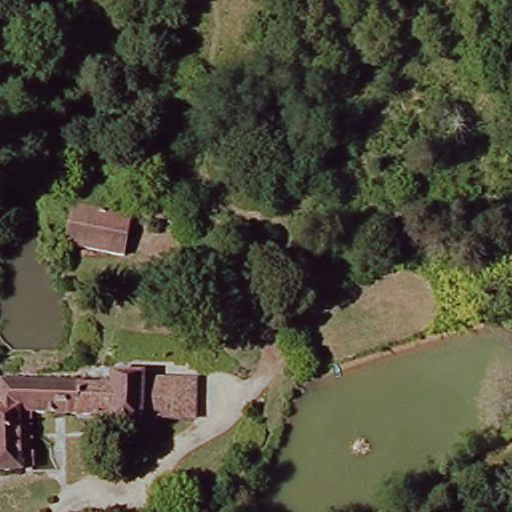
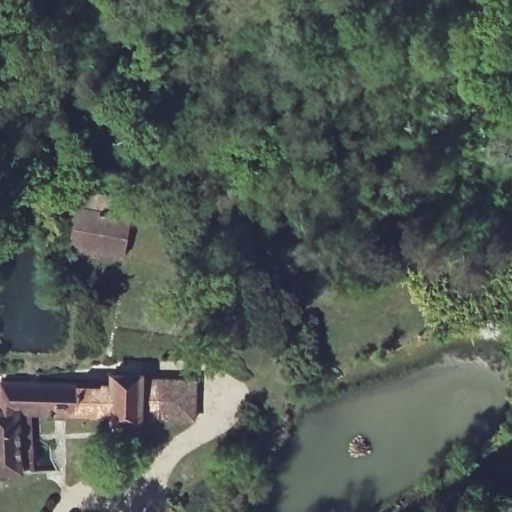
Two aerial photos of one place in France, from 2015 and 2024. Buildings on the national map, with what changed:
unchanged [(57,212),(59,187),(70,187),(67,212),(57,212)]
unchanged [(126,259),(64,253),(67,212),(130,219),(126,259)]
unchanged [(14,478),(0,477),(0,416),(2,416),(3,386),(113,388),(112,374),(141,375),(141,382),(192,383),(191,425),(140,425),(139,430),(111,431),(111,423),(27,421),(27,450),(26,478),(14,478)]

